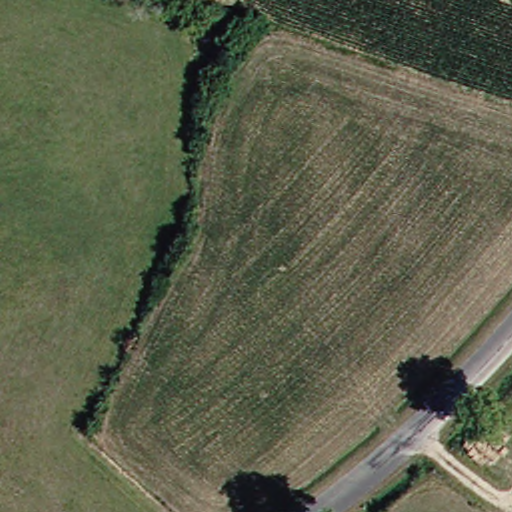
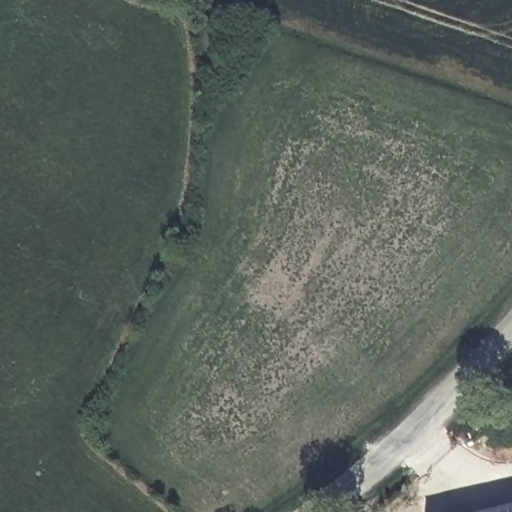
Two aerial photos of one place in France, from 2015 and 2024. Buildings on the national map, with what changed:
new [(512,505),(512,512),(483,512),(512,505)]

